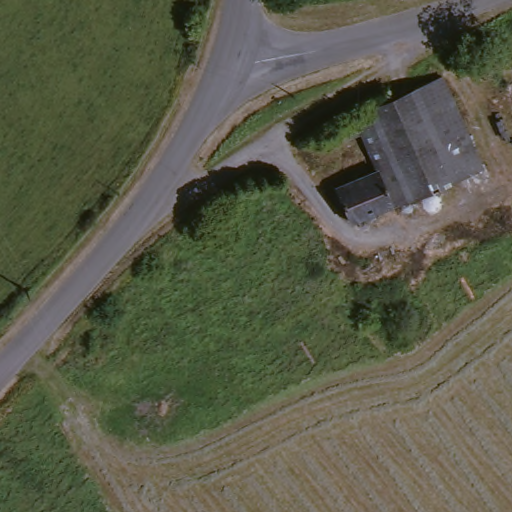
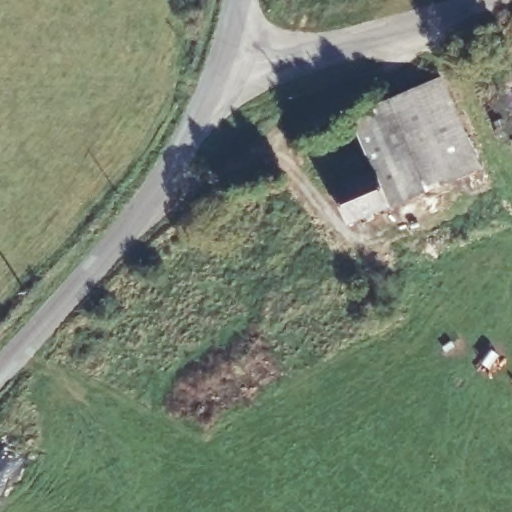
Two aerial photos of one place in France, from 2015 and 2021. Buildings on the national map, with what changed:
unchanged [(363,132),(351,137),(344,121),(443,76),(481,164),(394,202),(378,167),(363,132)]
unchanged [(352,221),(338,185),(378,167),(394,202),(352,221)]

